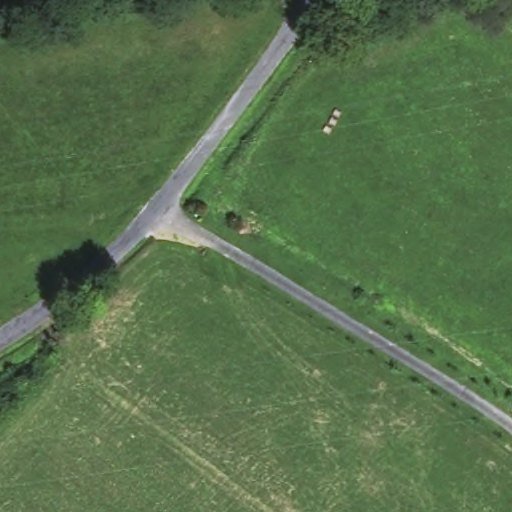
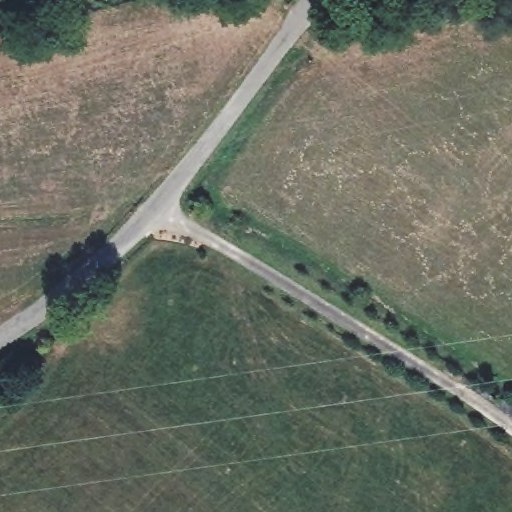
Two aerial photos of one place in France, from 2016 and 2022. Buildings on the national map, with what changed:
[]

